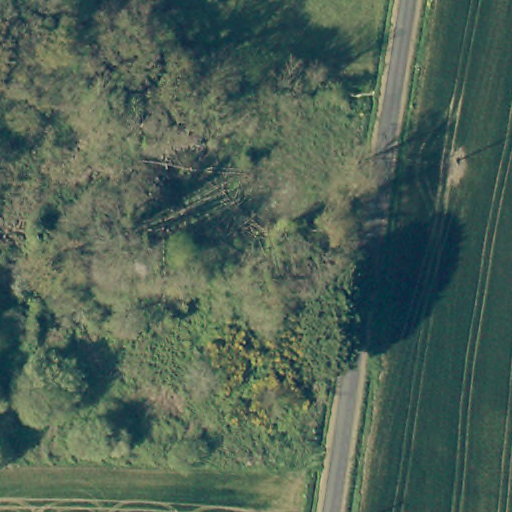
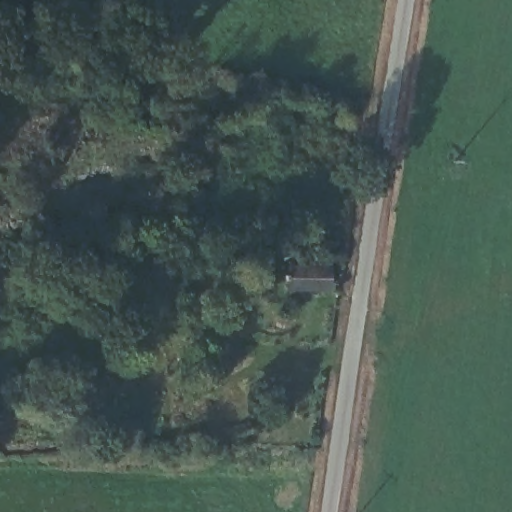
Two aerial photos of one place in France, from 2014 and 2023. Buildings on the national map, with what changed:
unchanged [(28,214),(88,215),(87,246),(27,245),(28,214)]
unchanged [(284,271),(321,272),(321,299),(284,298),(284,271)]

